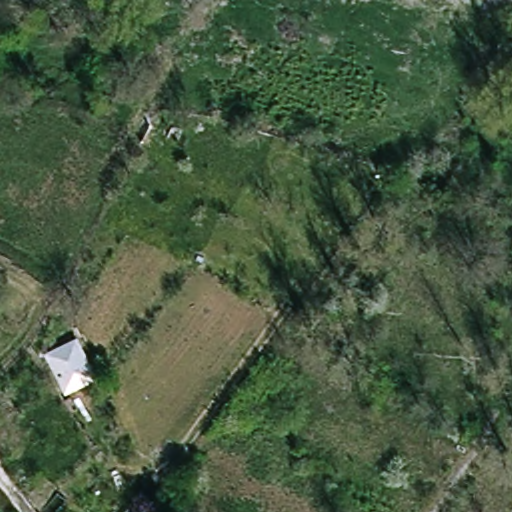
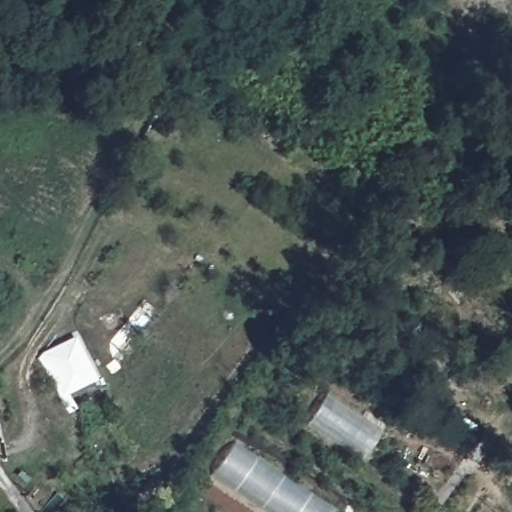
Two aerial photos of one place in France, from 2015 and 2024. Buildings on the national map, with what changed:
unchanged [(63,395),(43,352),(80,335),(100,379),(63,395)]
new [(385,431),(366,461),(308,424),(327,394),(385,431)]
new [(337,509),(335,512),(272,512),(213,474),(235,444),(337,509)]

